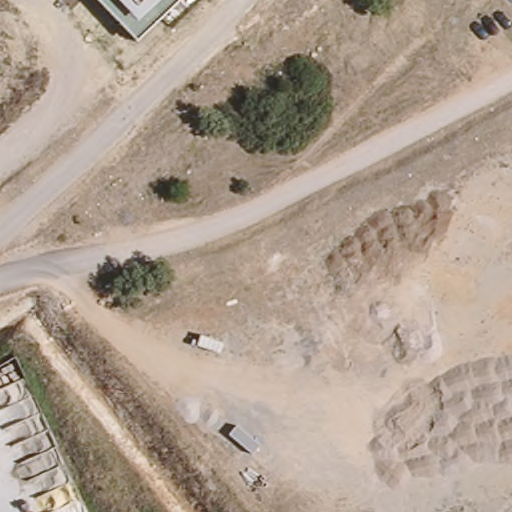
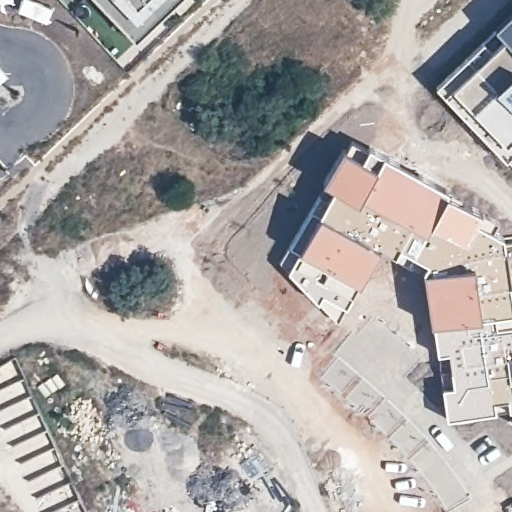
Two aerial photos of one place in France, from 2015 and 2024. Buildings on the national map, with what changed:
unchanged [(98,0),(179,0),(137,40),(98,0)]
new [(436,87),(512,15),(512,156),(507,160),(436,87)]
new [(507,401),(495,403),(497,412),(446,420),(441,386),(451,384),(447,355),(437,356),(431,324),(422,274),(424,267),(426,263),(406,252),(402,260),(394,255),(380,247),(337,321),(286,270),(288,268),(318,213),(332,188),(323,183),(344,148),(362,158),(369,145),(383,152),(448,190),(483,213),(479,221),(506,235),(512,284),(512,410),(509,411),(507,401)]

